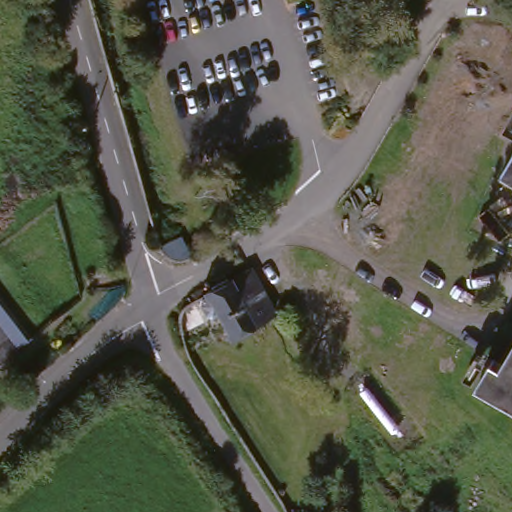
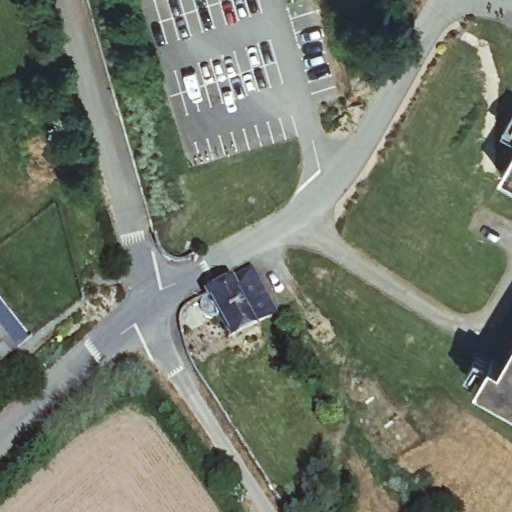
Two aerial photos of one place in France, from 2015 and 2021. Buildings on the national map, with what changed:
unchanged [(512,157),(512,178),(503,173),(512,157)]
unchanged [(250,273),(275,317),(233,337),(209,294),(250,273)]
unchanged [(28,330),(0,353),(0,296),(28,330)]
unchanged [(493,357),(499,361),(512,342),(512,403),(479,385),(493,357)]

